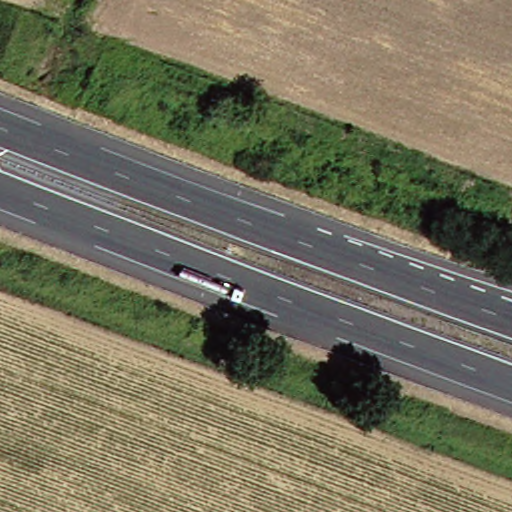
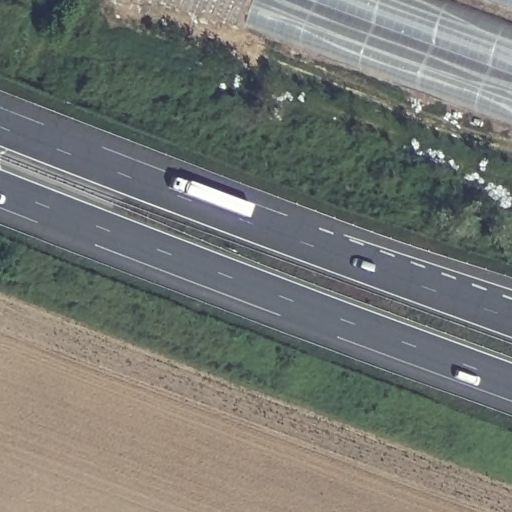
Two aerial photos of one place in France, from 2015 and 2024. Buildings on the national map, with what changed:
new [(249,27),(259,0),(512,0),(512,127),(249,27)]

